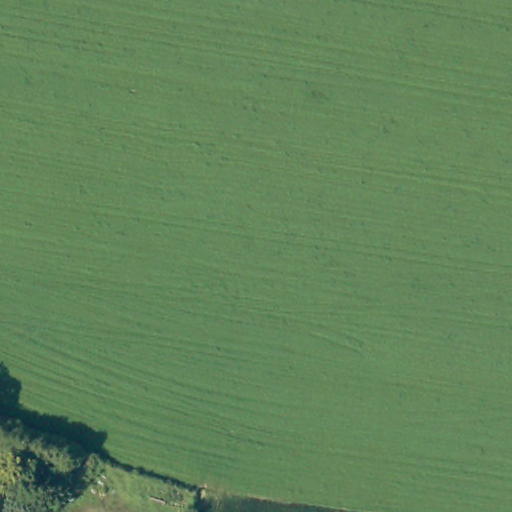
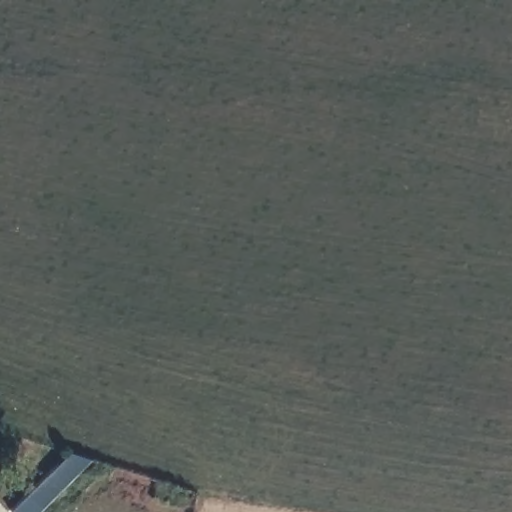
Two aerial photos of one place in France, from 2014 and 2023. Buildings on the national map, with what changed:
new [(71,455),(92,461),(42,512),(13,512),(71,455)]

